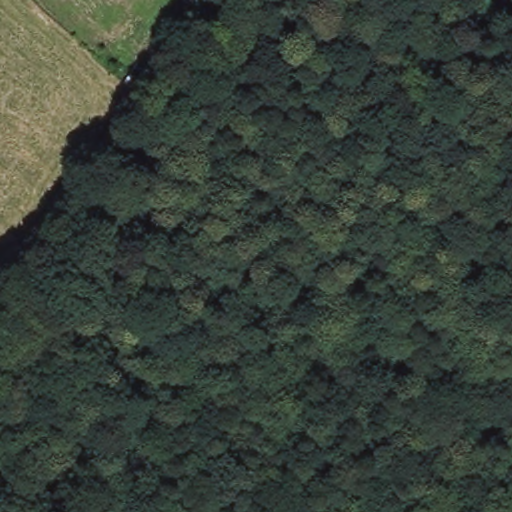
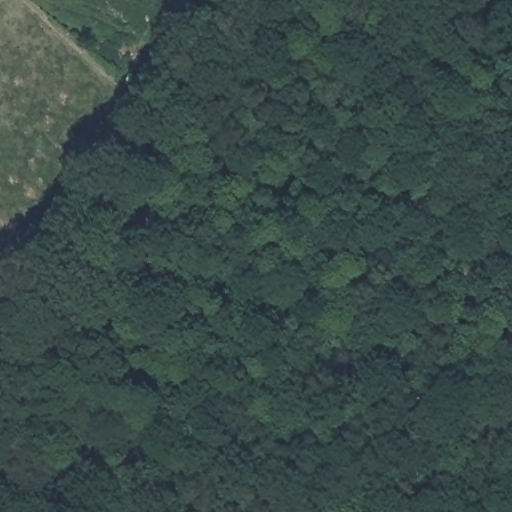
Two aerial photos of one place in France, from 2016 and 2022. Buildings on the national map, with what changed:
unchanged [(149,101),(132,87),(147,63),(156,49),(176,61),(149,101)]

